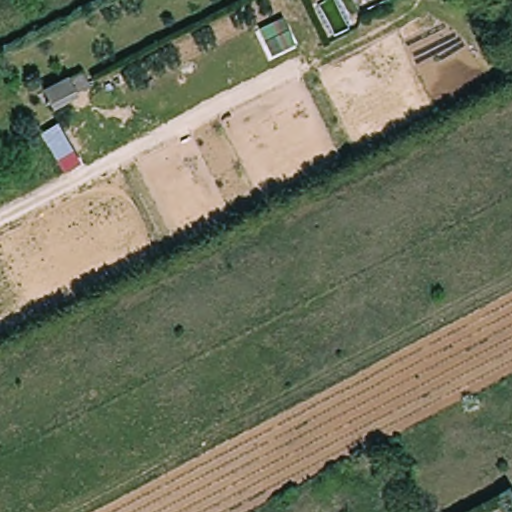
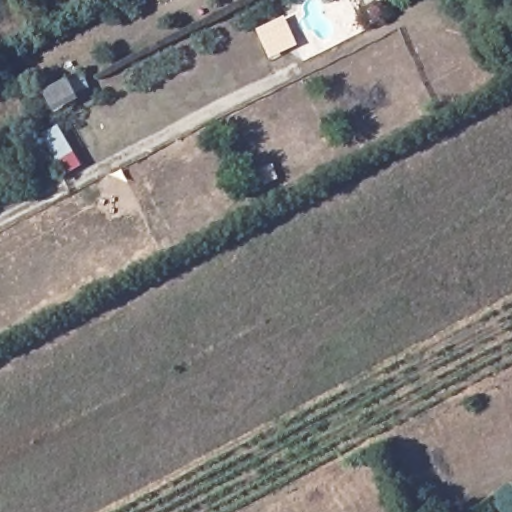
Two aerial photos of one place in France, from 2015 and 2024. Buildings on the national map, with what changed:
unchanged [(44,90),(72,75),(88,67),(98,87),(83,96),(56,111),(44,90)]

